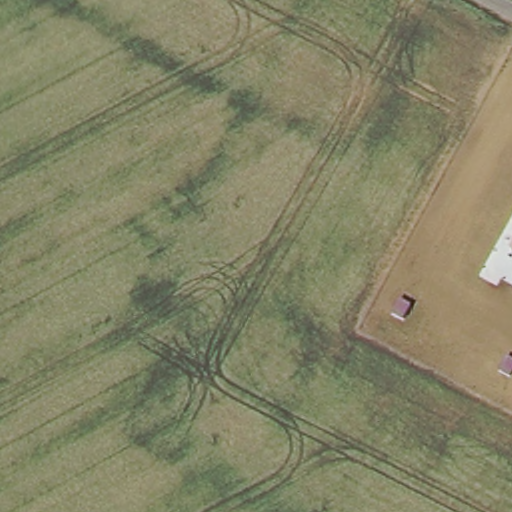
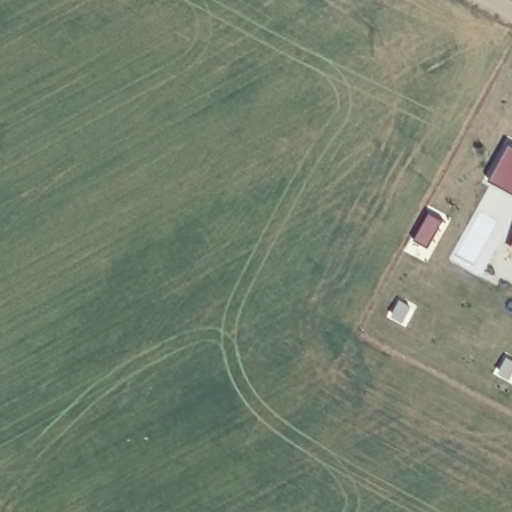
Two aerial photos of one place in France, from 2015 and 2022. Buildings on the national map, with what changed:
new [(508,142),(512,145),(512,192),(489,179),(508,142)]
unchanged [(512,242),(512,252),(508,250),(512,242)]

